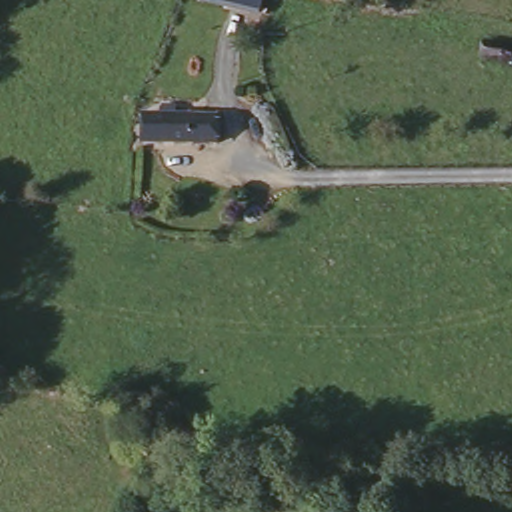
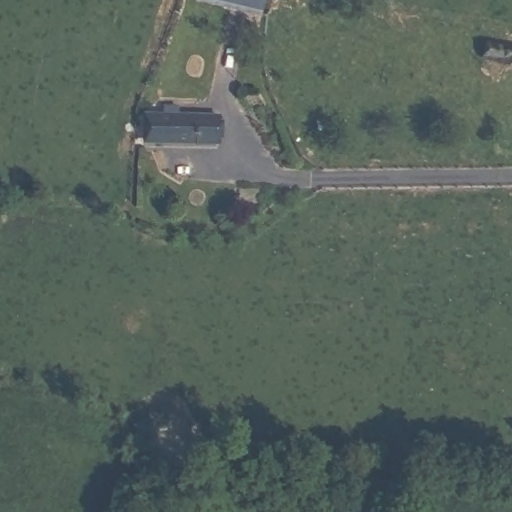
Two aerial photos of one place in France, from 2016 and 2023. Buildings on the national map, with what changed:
unchanged [(191,1),(191,0),(260,0),(257,14),(191,1)]
unchanged [(512,49),(512,65),(486,59),(489,44),(512,49)]
unchanged [(155,116),(223,117),(223,144),(197,144),(197,140),(149,140),(155,116)]

